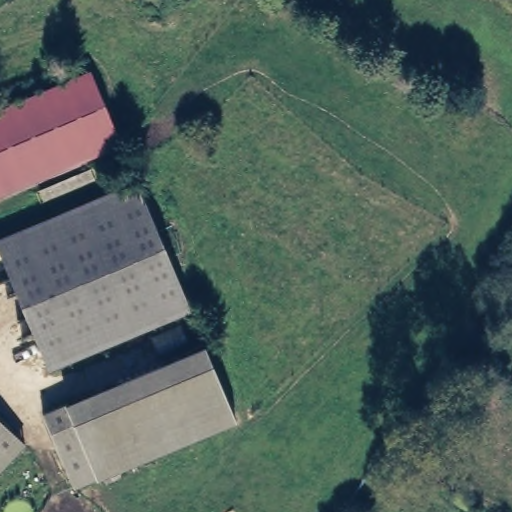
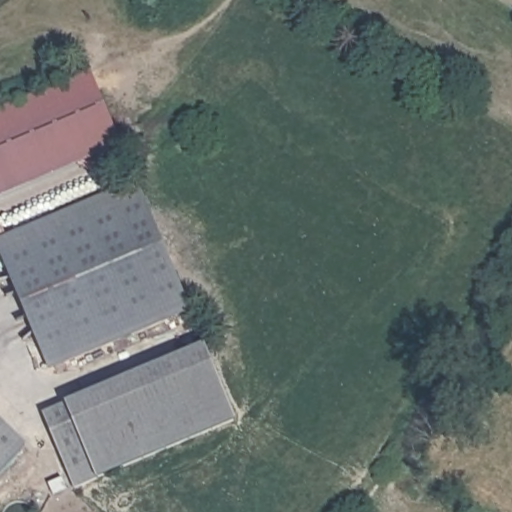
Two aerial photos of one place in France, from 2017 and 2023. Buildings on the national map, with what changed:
unchanged [(122,148),(0,201),(0,128),(95,87),(122,148)]
unchanged [(47,372),(0,258),(0,243),(132,187),(188,314),(47,372)]
unchanged [(85,488),(50,409),(200,350),(237,428),(85,488)]
unchanged [(26,448),(0,475),(0,425),(26,448)]

